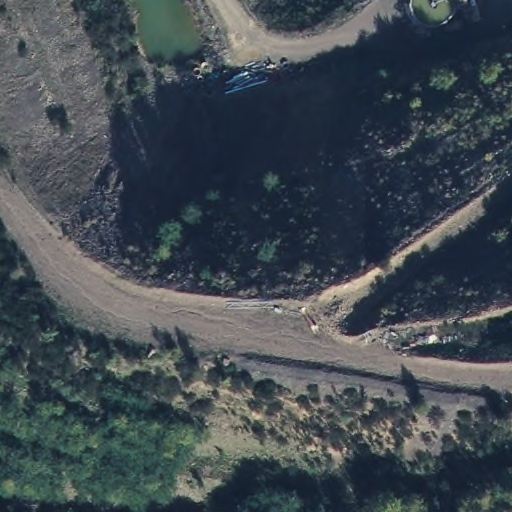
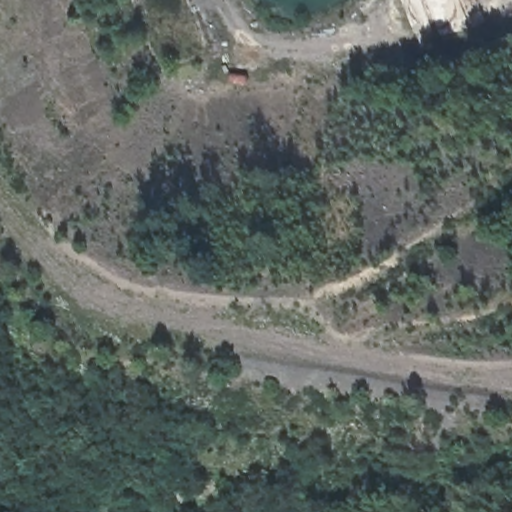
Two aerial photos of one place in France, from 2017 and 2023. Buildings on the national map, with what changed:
[]

